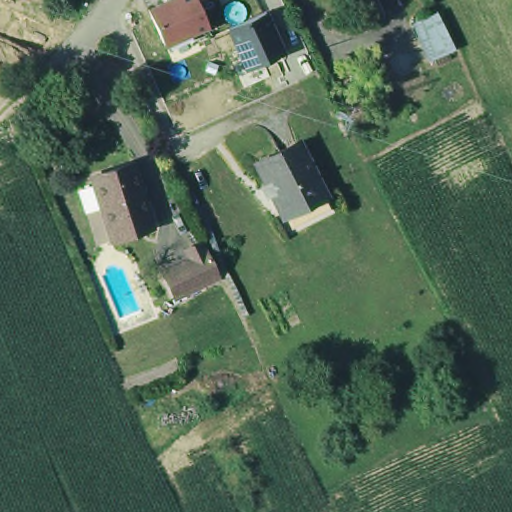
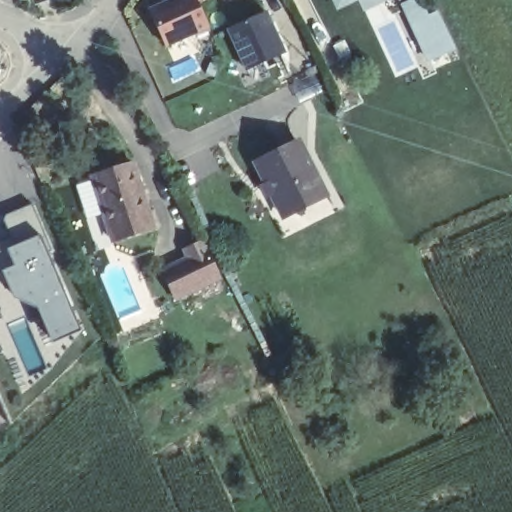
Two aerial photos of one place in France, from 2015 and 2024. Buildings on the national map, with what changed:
unchanged [(204,0),(198,2),(208,29),(165,49),(148,10),(169,0),(204,0)]
unchanged [(439,43),(418,52),(403,19),(423,10),(439,43)]
unchanged [(267,12),(285,53),(245,72),(227,31),(267,12)]
unchanged [(280,202),(273,187),(267,189),(263,181),(268,179),(258,156),(296,137),(301,134),(324,180),(328,189),(323,191),(284,212),(280,202)]
unchanged [(155,222),(115,236),(94,172),(134,159),(155,222)]
new [(39,236),(80,330),(49,342),(34,306),(11,299),(0,274),(0,271),(14,265),(4,250),(39,236)]
unchanged [(173,298),(159,271),(186,257),(182,250),(199,242),(216,277),(173,298)]
new [(1,320),(0,320),(0,318),(1,320)]

